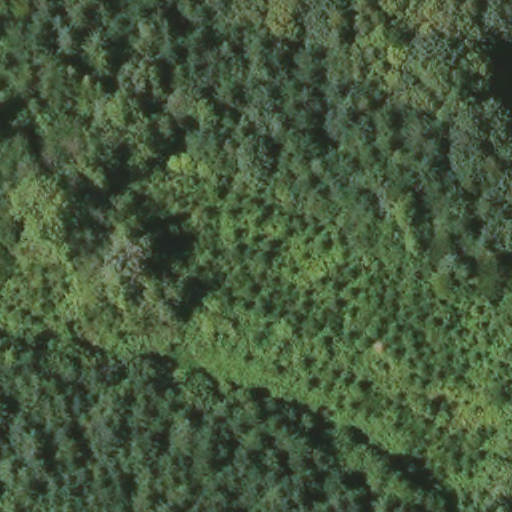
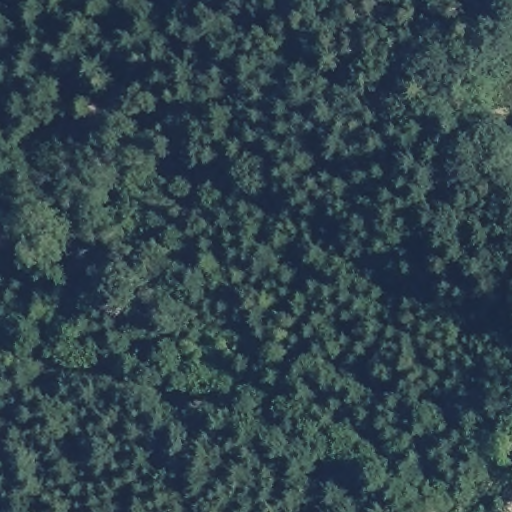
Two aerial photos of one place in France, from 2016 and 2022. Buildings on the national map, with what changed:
unchanged [(509,85),(509,96),(494,96),(493,86),(509,85)]

